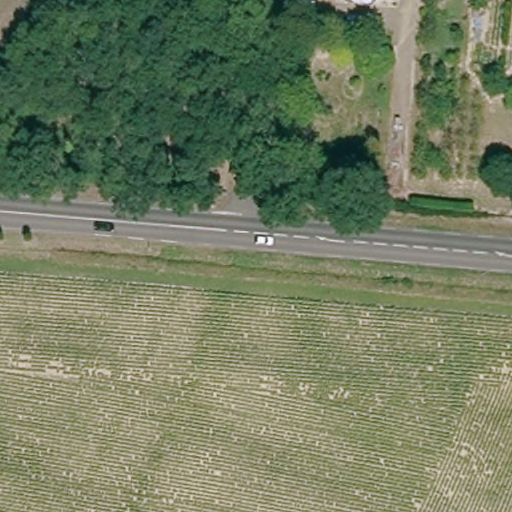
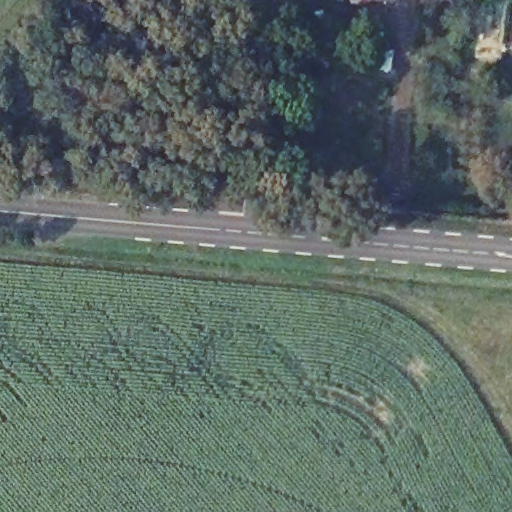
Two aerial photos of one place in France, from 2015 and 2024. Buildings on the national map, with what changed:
unchanged [(319,0),(405,0),(405,4),(319,0)]

